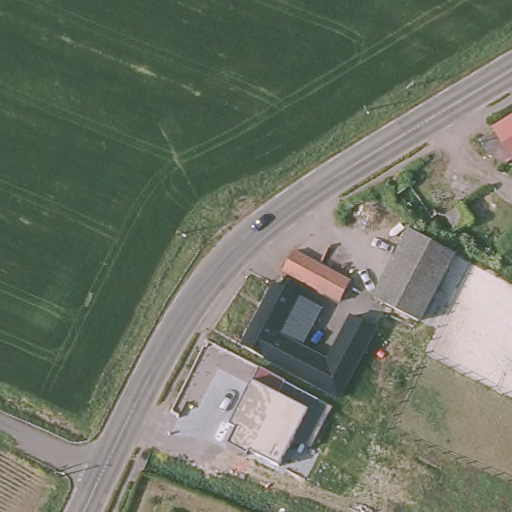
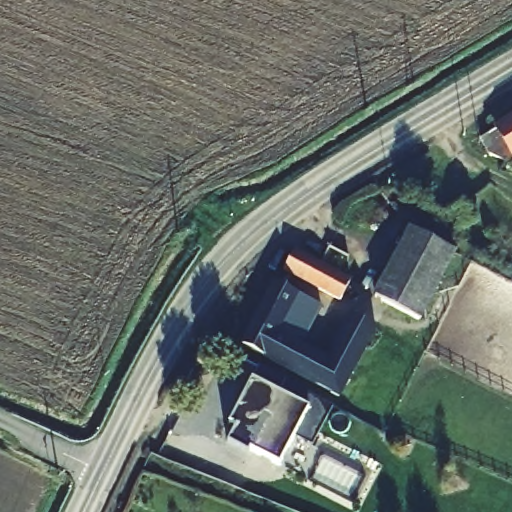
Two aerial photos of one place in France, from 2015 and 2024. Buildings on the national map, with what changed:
unchanged [(470,139),(512,114),(512,153),(505,156),(470,139)]
unchanged [(446,211),(462,199),(474,215),(457,227),(446,211)]
unchanged [(454,259),(425,315),(379,292),(414,227),(459,250),(454,259)]
unchanged [(355,301),(343,295),(340,300),(283,271),(295,248),(352,279),(354,273),(362,277),(357,287),(360,289),(355,301)]
unchanged [(337,391),(287,364),(240,339),(275,277),(296,288),(286,306),(299,314),(286,334),(327,355),(352,310),(375,322),(370,331),(337,391)]
unchanged [(332,407),(311,446),(294,438),(278,466),(250,452),(248,456),(227,444),(237,428),(230,425),(251,383),(259,367),(332,407)]

